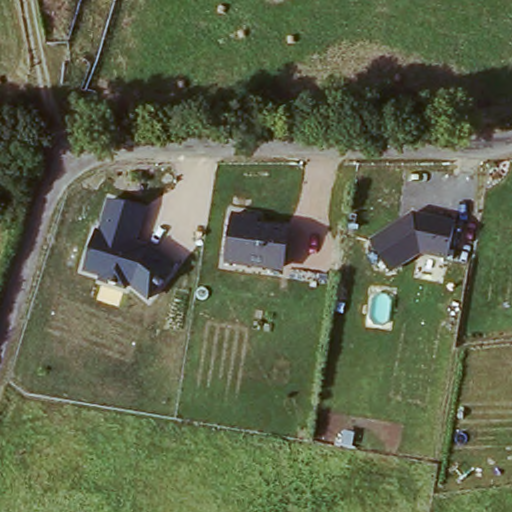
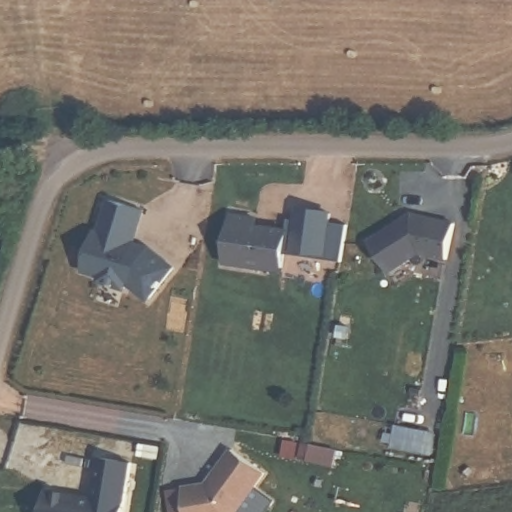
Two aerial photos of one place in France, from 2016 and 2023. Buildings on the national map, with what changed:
unchanged [(146,209),(140,242),(155,246),(178,266),(149,302),(129,285),(129,290),(99,283),(100,277),(84,272),(96,227),(100,228),(109,199),(146,209)]
new [(333,210),(330,221),(346,223),(341,256),(290,248),(298,204),(333,210)]
unchanged [(369,241),(413,212),(457,220),(448,259),(420,255),(391,273),(369,241)]
unchanged [(283,273),(226,262),(234,214),(262,217),(260,223),(289,228),(283,273)]
new [(310,443),(338,448),(335,466),(307,462),(310,443)]
new [(234,449),(267,473),(237,512),(188,512),(184,486),(209,483),(234,449)]
new [(91,496),(99,456),(129,461),(121,512),(42,512),(45,488),(91,496)]

